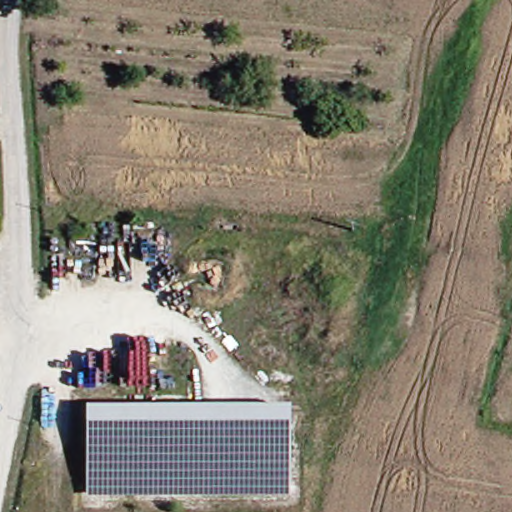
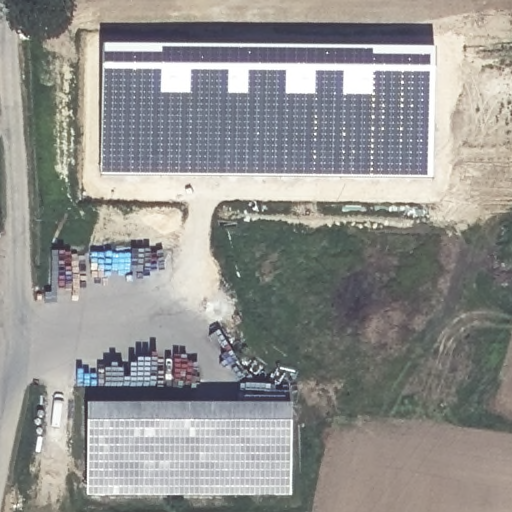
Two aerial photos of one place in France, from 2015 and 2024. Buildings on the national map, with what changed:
new [(433,180),(100,177),(101,48),(435,52),(433,180)]
unchanged [(0,311),(0,309),(1,310),(0,311)]
unchanged [(293,414),(294,493),(88,495),(86,415),(293,414)]

